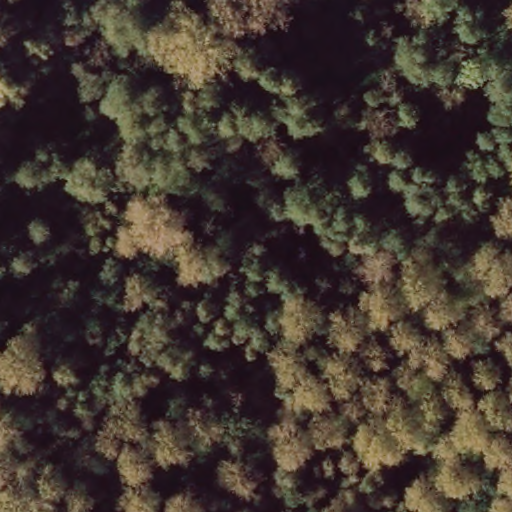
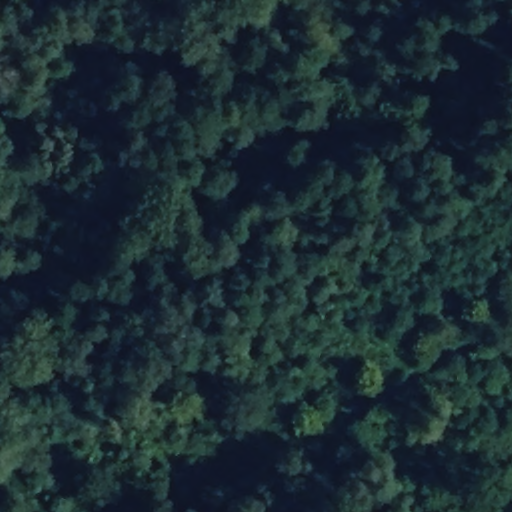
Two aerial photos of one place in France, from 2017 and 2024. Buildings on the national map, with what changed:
unchanged [(347,104),(359,97),(369,111),(355,119),(347,104)]

